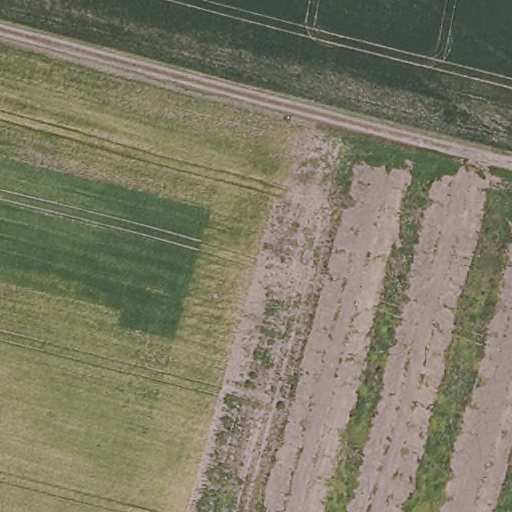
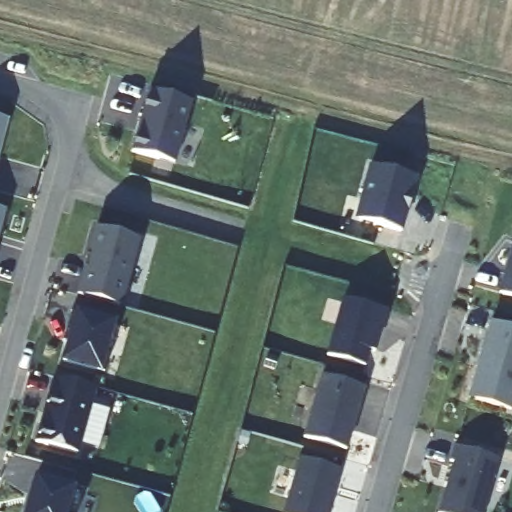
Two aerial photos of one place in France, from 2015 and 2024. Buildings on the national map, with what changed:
new [(132,152),(138,132),(140,132),(144,122),(141,122),(146,104),(147,105),(152,91),(150,91),(150,90),(192,102),(174,164),(132,152)]
new [(7,120),(0,146),(0,118),(7,120)]
new [(405,232),(354,219),(368,164),(420,177),(405,232)]
new [(5,210),(0,227),(0,209),(5,210)]
new [(85,268),(84,268),(87,256),(88,257),(96,227),(139,239),(120,307),(77,295),(85,268)]
new [(512,296),(500,293),(512,249),(512,296)]
new [(369,350),(365,367),(327,356),(344,298),(387,310),(379,337),(375,352),(369,350)]
new [(107,372),(63,359),(75,312),(120,322),(107,372)]
new [(512,327),(512,408),(512,410),(469,397),(492,321),(512,327)]
new [(322,375),(364,387),(346,450),(304,437),(322,375)]
new [(95,388),(77,453),(37,442),(41,424),(45,425),(47,414),(44,413),(54,377),(95,388)]
new [(454,462),(450,461),(455,446),(499,458),(483,512),(439,512),(454,462)]
new [(299,457),(340,469),(328,512),(283,512),(299,457)]
new [(74,512),(28,512),(37,473),(80,485),(74,512)]

